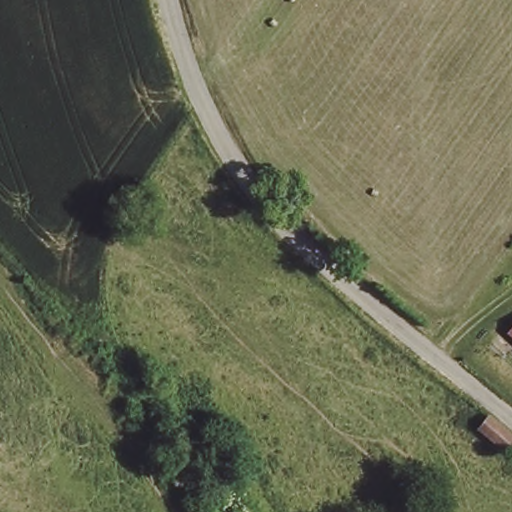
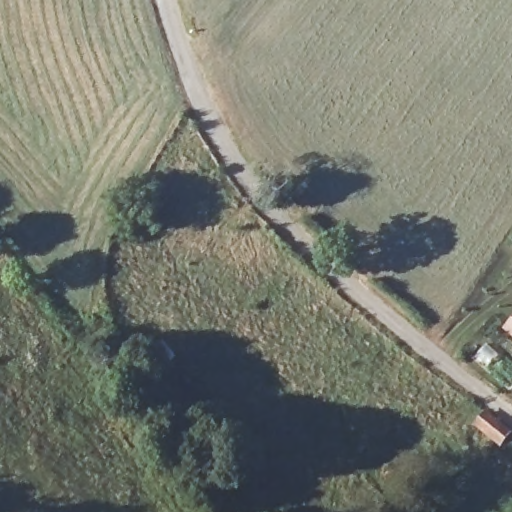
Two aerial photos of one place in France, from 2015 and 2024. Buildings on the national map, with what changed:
unchanged [(512,330),(512,334),(511,332),(512,330)]
unchanged [(483,412),(510,433),(502,447),(474,428),(483,412)]

